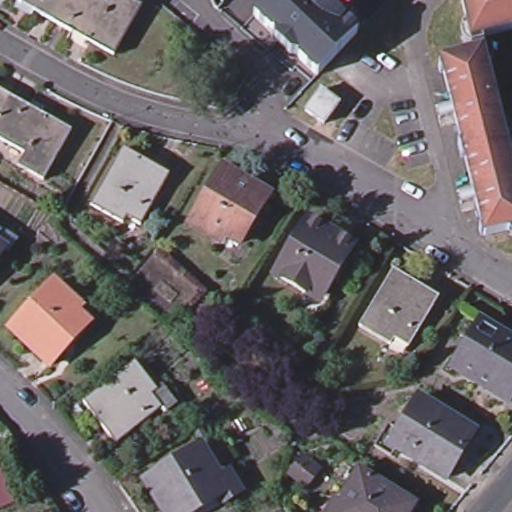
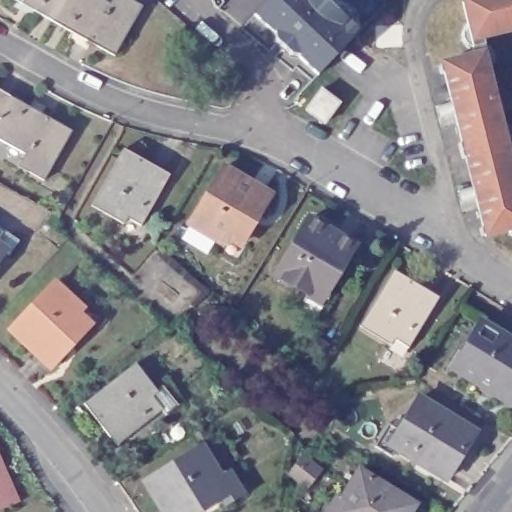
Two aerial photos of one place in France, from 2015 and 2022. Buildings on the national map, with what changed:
unchanged [(49,24),(8,0),(63,0),(49,24)]
unchanged [(63,0),(96,0),(105,5),(108,0),(120,0),(138,10),(109,59),(49,24),(63,0)]
unchanged [(272,33),(272,26),(253,7),(260,0),(329,0),(356,26),(334,49),(321,62),(316,68),(297,50),(288,48),(272,33)]
unchanged [(498,0),(499,0),(512,0),(512,38),(467,49),(457,11),(475,6),(473,0),(497,0),(498,0)]
unchanged [(512,210),(512,236),(479,244),(472,217),(466,195),(450,132),(444,110),(435,74),(474,63),(512,210)]
unchanged [(338,101),(323,121),(304,108),(319,87),(338,101)]
unchanged [(6,94),(0,106),(0,90),(6,94)]
unchanged [(66,128),(39,176),(13,162),(20,150),(0,139),(0,106),(6,94),(66,128)]
unchanged [(164,176),(136,226),(121,218),(118,224),(85,206),(118,149),(164,176)]
unchanged [(266,197),(236,245),(221,237),(218,243),(186,223),(220,169),(266,197)]
unchanged [(350,247),(320,297),(306,288),(301,294),(271,276),(304,220),(350,247)]
unchanged [(1,248),(0,250),(0,247),(1,248)]
unchanged [(435,299),(404,349),(391,341),(387,347),(356,327),(390,273),(435,299)]
unchanged [(53,280),(79,305),(74,310),(86,323),(47,363),(9,327),(53,280)]
unchanged [(461,358),(454,353),(474,323),(512,347),(512,388),(503,402),(452,372),(461,358)]
unchanged [(134,360),(158,389),(151,393),(163,407),(116,442),(83,399),(134,360)]
unchanged [(391,449),(401,434),(394,430),(413,400),(469,433),(441,479),(391,449)]
unchanged [(221,476),(216,479),(224,493),(192,512),(167,512),(146,477),(201,445),(221,476)]
unchanged [(1,456),(6,470),(11,482),(18,496),(0,504),(0,454),(1,456)]
unchanged [(334,512),(340,502),(334,499),(354,467),(409,500),(402,512),(334,512)]

